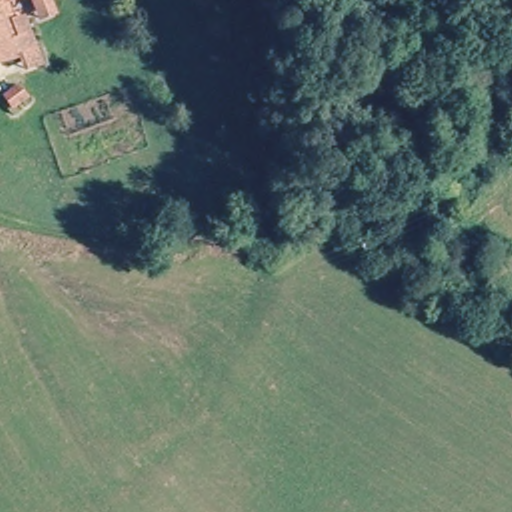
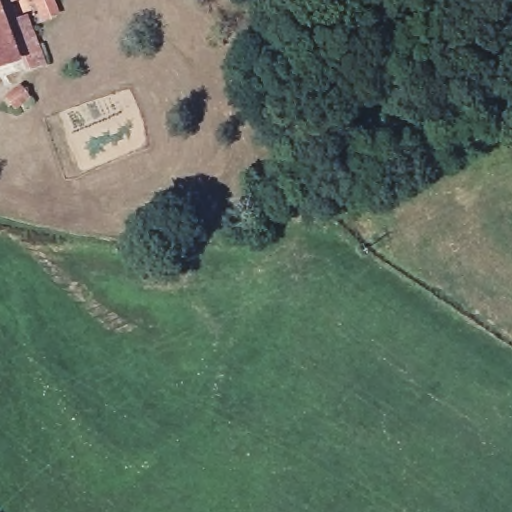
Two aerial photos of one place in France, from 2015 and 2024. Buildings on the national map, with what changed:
unchanged [(30,72),(24,55),(15,56),(0,61),(0,0),(29,0),(25,2),(11,6),(17,25),(31,22),(46,69),(30,72)]
unchanged [(13,112),(4,102),(16,92),(25,105),(13,112)]

